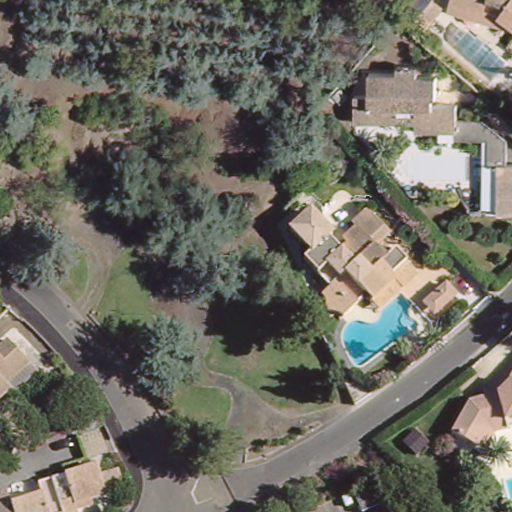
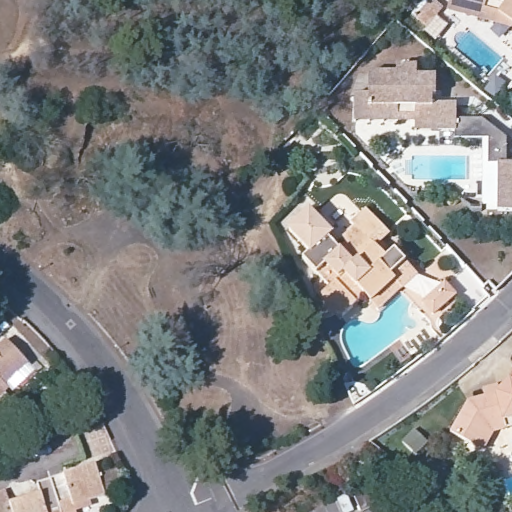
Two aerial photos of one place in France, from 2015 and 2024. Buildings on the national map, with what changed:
unchanged [(424,25),(423,24),(416,17),(415,16),(429,0),(435,0),(441,5),(424,25)]
unchanged [(448,0),(512,0),(512,25),(446,9),(448,0)]
unchanged [(486,116),(510,137),(509,160),(512,161),(512,211),(500,211),(500,164),(490,164),(491,138),(457,137),(457,130),(416,129),(416,120),(357,119),(356,94),(369,94),(370,70),(396,70),(397,62),(417,64),(417,74),(440,74),(439,94),(434,94),(434,101),(460,101),(460,117),(486,116)]
unchanged [(374,305),(369,300),(363,293),(341,315),(336,310),(325,310),(325,298),(320,293),(326,287),(301,261),(307,255),(286,233),(306,214),(339,248),(345,241),(341,237),(355,225),(359,228),(372,215),(386,231),(372,245),(383,256),(392,248),(407,263),(412,268),(374,305)]
unchanged [(443,278),(454,290),(441,302),(430,291),(443,278)]
unchanged [(27,363),(3,384),(0,380),(0,343),(5,338),(27,363)]
unchanged [(482,450),(473,445),(447,431),(465,398),(492,393),(507,376),(512,369),(512,426),(492,432),(491,434),(482,450)]
unchanged [(3,384),(8,388),(0,395),(0,380),(3,384)]
unchanged [(8,501),(39,491),(36,480),(63,472),(94,462),(104,493),(88,498),(88,502),(73,507),(72,507),(61,511),(61,512),(0,512),(0,504),(8,501)]
unchanged [(379,502),(359,511),(348,489),(369,480),(379,502)]

